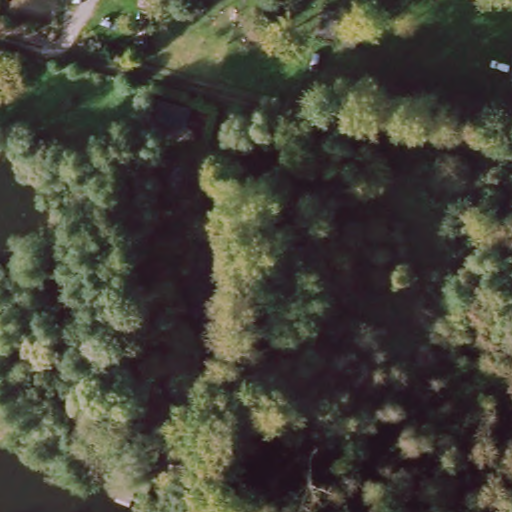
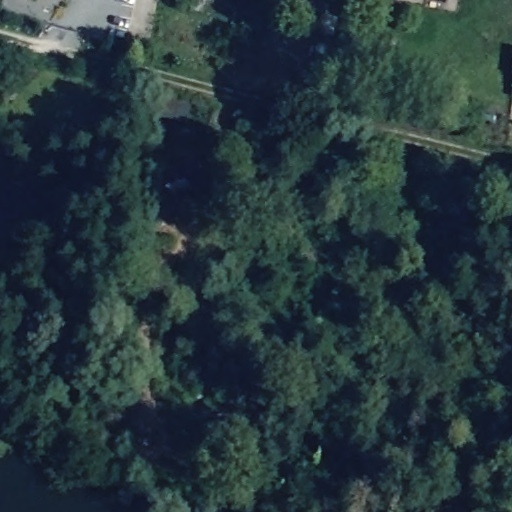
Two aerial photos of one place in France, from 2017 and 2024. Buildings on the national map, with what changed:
unchanged [(243,114),(266,119),(264,134),(240,128),(243,114)]

